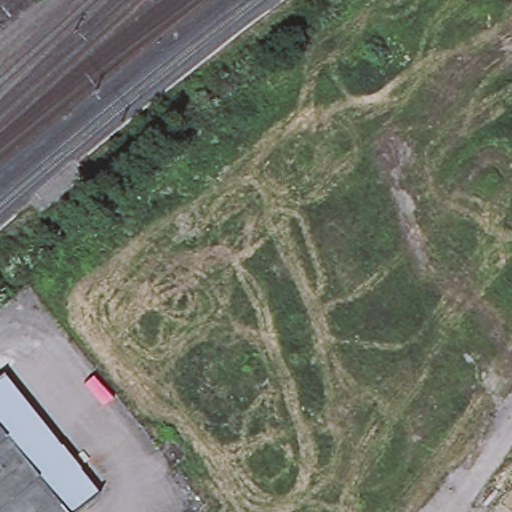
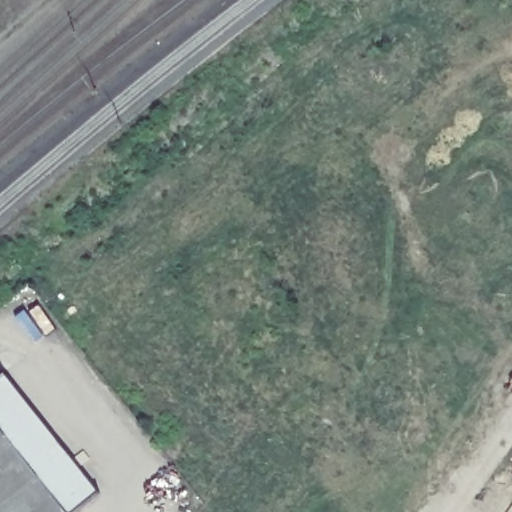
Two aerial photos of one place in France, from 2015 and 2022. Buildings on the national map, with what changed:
unchanged [(0,377),(2,375),(97,499),(80,512),(60,512),(4,438),(0,433),(0,377)]
unchanged [(0,441),(0,433),(4,438),(0,441)]
unchanged [(60,512),(0,512),(0,441),(4,438),(60,512)]

